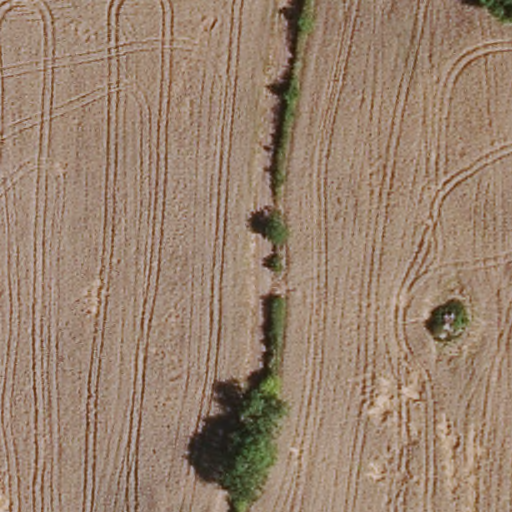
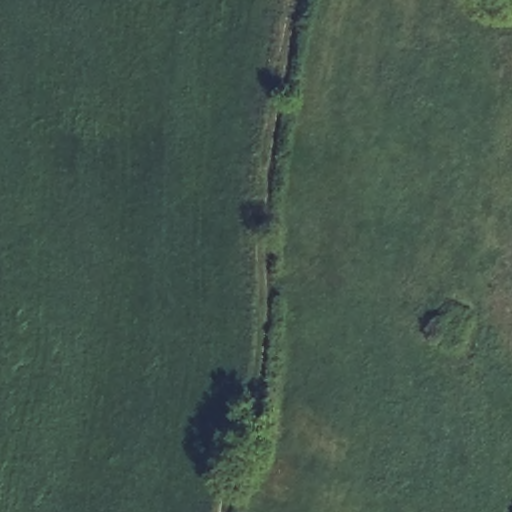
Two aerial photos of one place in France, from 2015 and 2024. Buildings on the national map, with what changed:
[]

